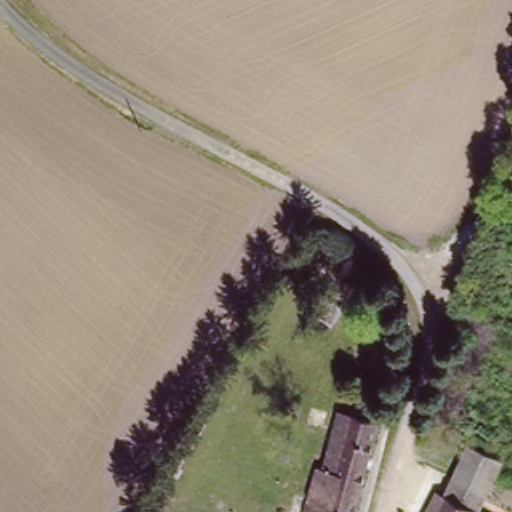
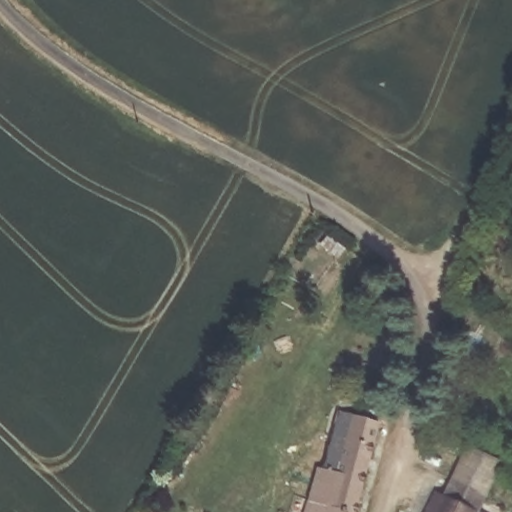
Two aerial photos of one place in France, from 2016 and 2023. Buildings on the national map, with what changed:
unchanged [(318,466),(324,468),(340,414),(351,418),(378,427),(355,512),(331,512),(308,504),(318,466)]
unchanged [(495,459),(478,492),(443,476),(458,441),(495,459)]
unchanged [(478,492),(469,512),(429,512),(443,476),(478,492)]
unchanged [(308,504),(331,512),(306,512),(308,504)]

